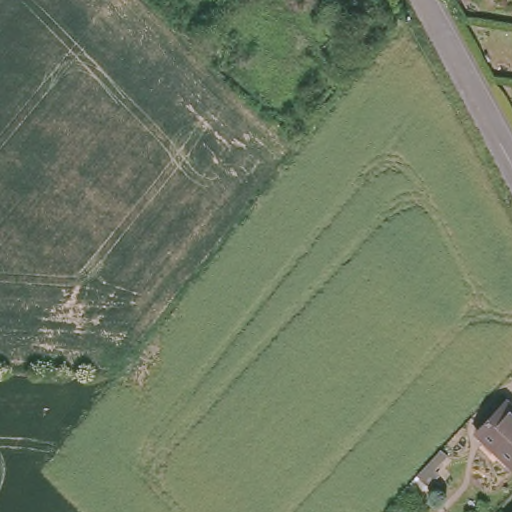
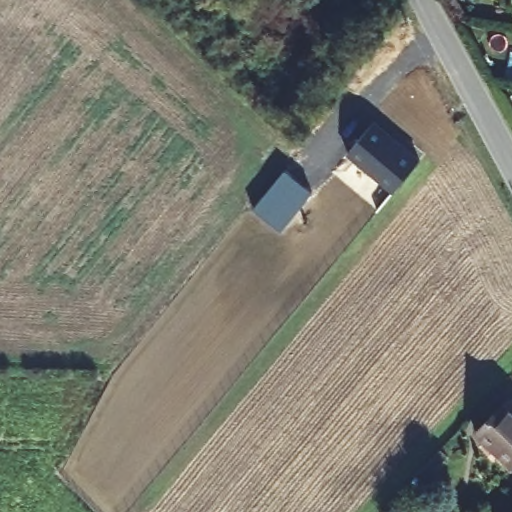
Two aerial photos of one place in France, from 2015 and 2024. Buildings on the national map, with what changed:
new [(346,154),(376,120),(422,158),(394,192),(346,154)]
new [(253,207),(286,169),(313,190),(283,230),(253,207)]
unchanged [(512,404),(512,466),(479,434),(510,402),(512,404)]
unchanged [(509,512),(512,509),(512,512),(509,512)]

